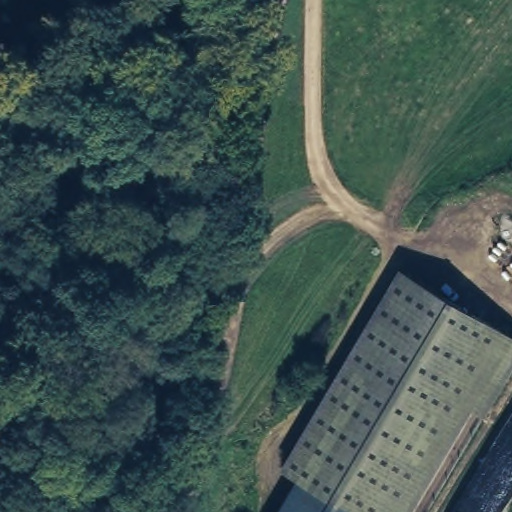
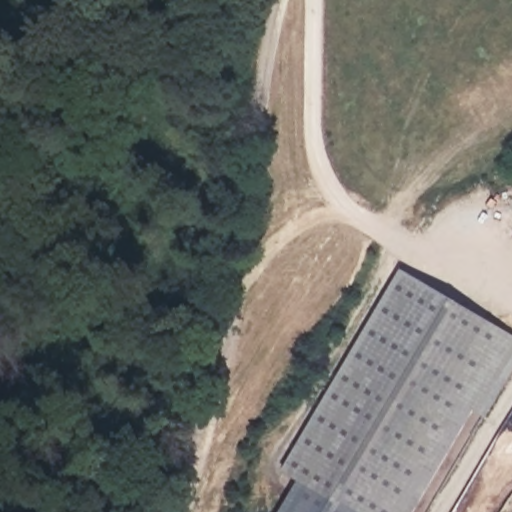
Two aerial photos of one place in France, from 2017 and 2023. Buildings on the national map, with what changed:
unchanged [(484,415),(462,402),(397,512),(353,512),(283,470),(400,272),(512,338),(512,368),(484,415)]
unchanged [(353,512),(280,512),(299,480),(307,484),(353,512)]

